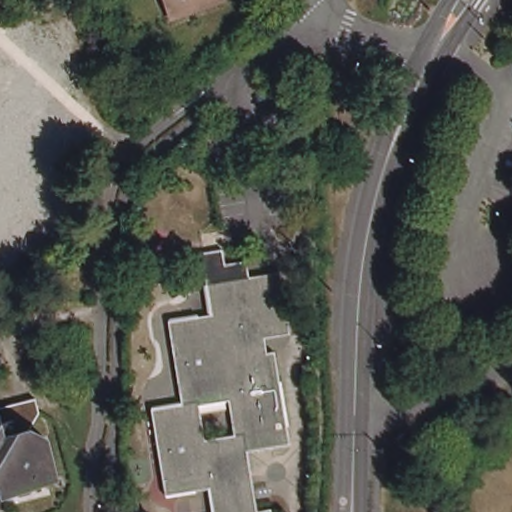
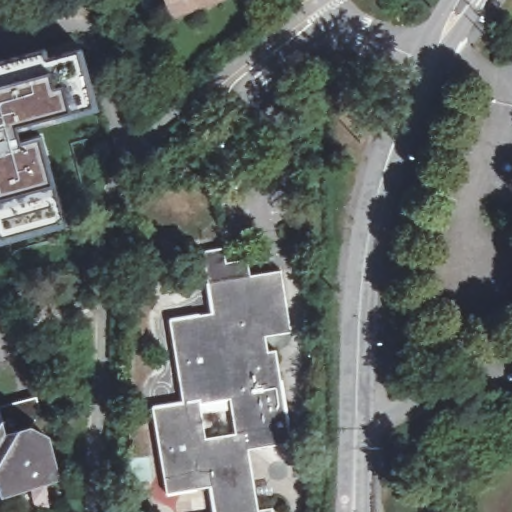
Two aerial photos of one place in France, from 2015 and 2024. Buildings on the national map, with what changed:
unchanged [(173,7),(171,0),(220,0),(192,9),(176,15),(173,7)]
new [(46,57),(81,47),(96,110),(45,123),(60,187),(55,189),(65,225),(0,243),(0,61),(44,49),(46,57)]
demolished [(0,255),(0,67),(58,51),(80,132),(1,154),(25,247),(0,255)]
unchanged [(248,449),(258,510),(271,508),(272,512),(214,512),(210,486),(166,493),(152,407),(181,401),(168,321),(211,313),(201,250),(224,246),(226,261),(245,258),(248,275),(280,271),(290,332),(265,337),(266,351),(275,350),(290,442),(248,449)]
unchanged [(31,392),(40,390),(44,406),(35,421),(50,429),(62,473),(5,486),(0,466),(0,401),(14,397),(31,392)]
demolished [(512,428),(512,512),(508,512),(488,435),(512,428)]
demolished [(458,442),(477,512),(449,512),(432,448),(458,442)]

